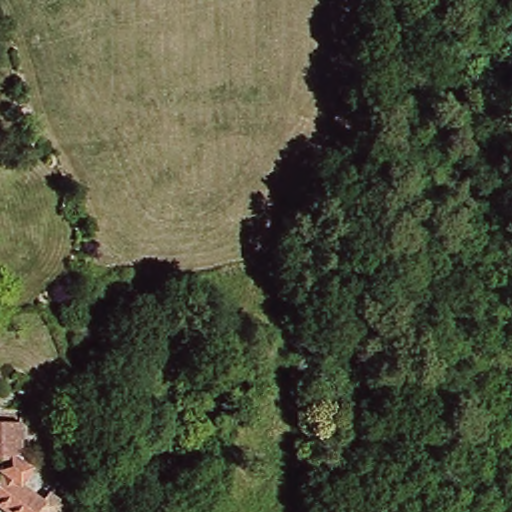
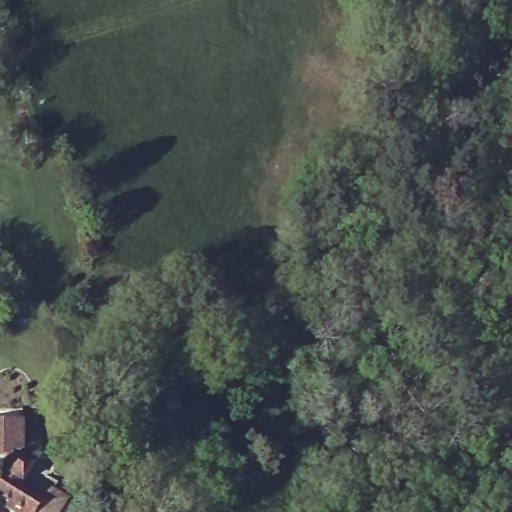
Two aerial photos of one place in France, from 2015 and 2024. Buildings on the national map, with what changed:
unchanged [(27,469),(17,483),(38,501),(31,512),(0,512),(0,424),(14,423),(16,460),(27,469)]
unchanged [(42,497),(59,509),(57,512),(31,512),(38,501),(42,497)]

